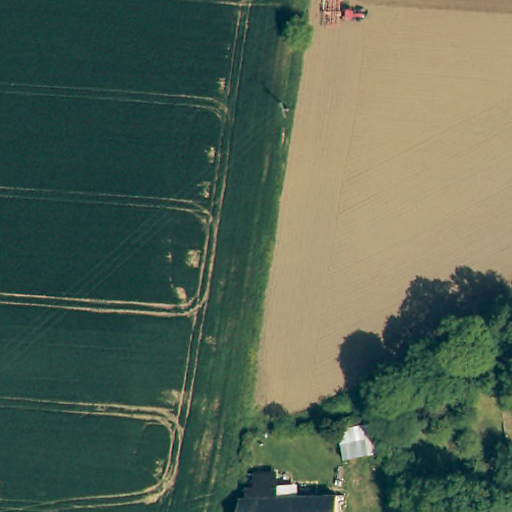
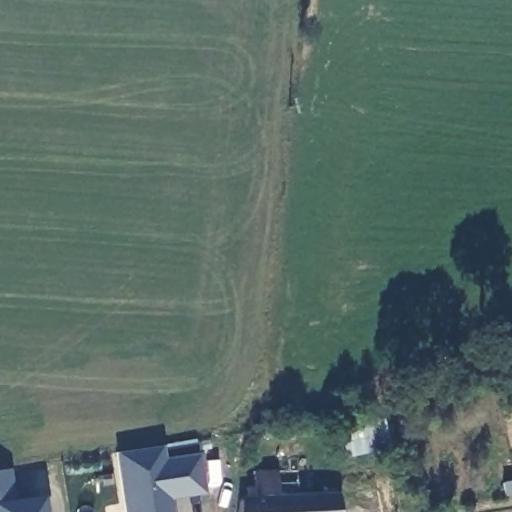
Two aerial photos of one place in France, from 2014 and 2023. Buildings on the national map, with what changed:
new [(165,445),(167,458),(200,452),(206,495),(172,500),(173,512),(124,512),(115,453),(165,445)]
unchanged [(339,512),(240,512),(244,499),(249,499),(249,489),(257,488),(257,474),(280,473),(280,498),(339,496),(339,512)]
new [(12,498),(41,494),(44,512),(0,512),(0,478),(9,476),(12,498)]

